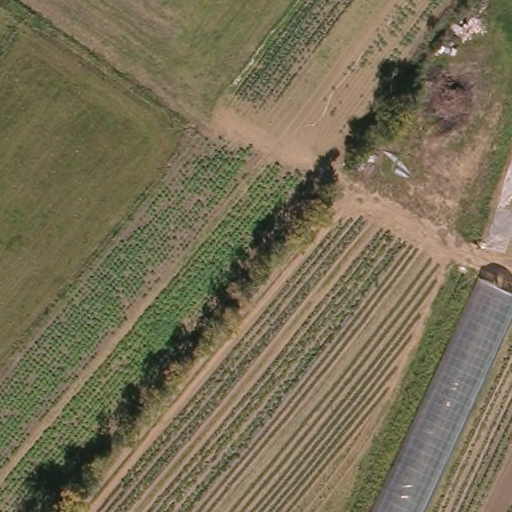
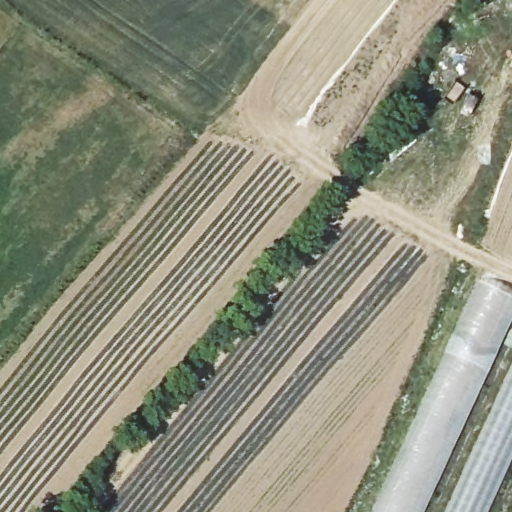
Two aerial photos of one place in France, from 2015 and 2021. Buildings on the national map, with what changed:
unchanged [(512,297),(512,316),(423,512),(370,512),(478,279),(512,297)]
new [(512,371),(512,453),(484,512),(448,512),(512,371)]

